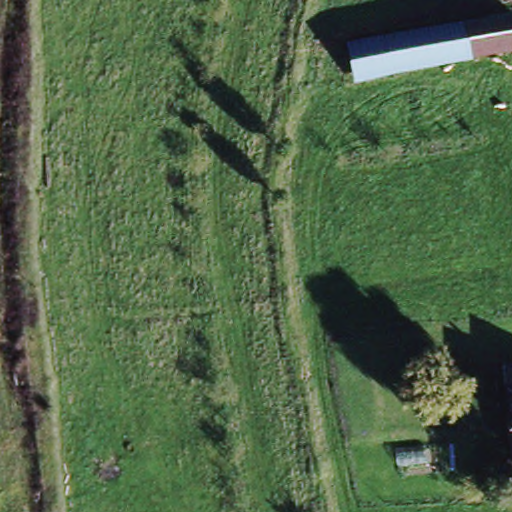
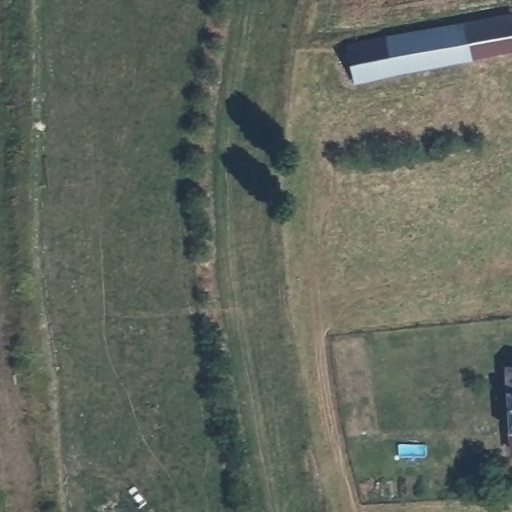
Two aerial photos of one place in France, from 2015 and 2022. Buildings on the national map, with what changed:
unchanged [(512,57),(358,80),(354,41),(512,17),(512,57)]
unchanged [(512,432),(508,432),(503,339),(512,338),(512,432)]

